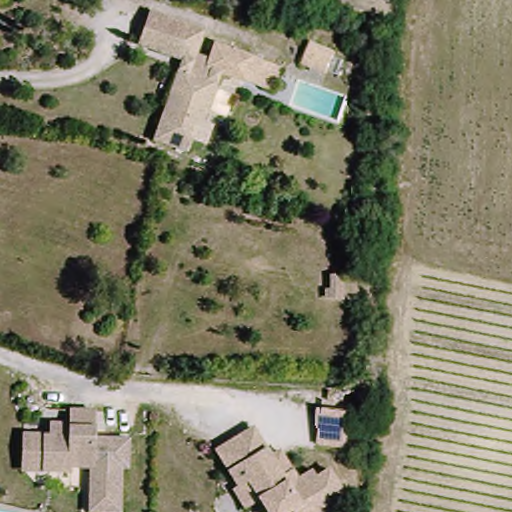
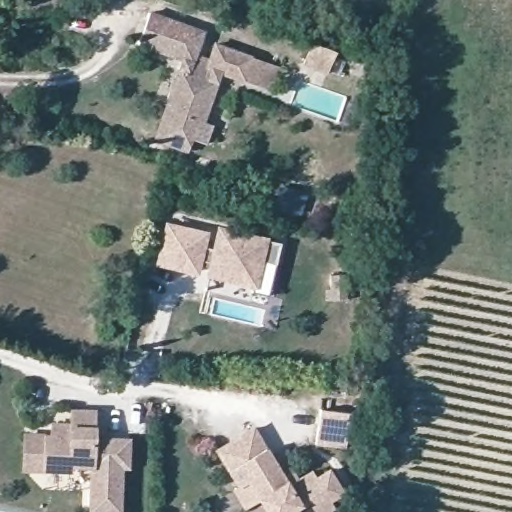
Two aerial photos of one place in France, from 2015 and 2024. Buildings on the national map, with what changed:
unchanged [(206,122),(211,124),(204,142),(192,138),(188,150),(154,137),(182,56),(138,41),(149,10),(203,29),(193,59),(206,63),(214,41),(256,55),(281,65),(273,90),(247,81),(223,72),(206,122)]
unchanged [(337,51),(328,73),(304,64),(312,42),(337,51)]
new [(208,274),(211,265),(201,262),(198,274),(160,265),(170,227),(208,236),(204,249),(214,251),(219,231),(280,247),(275,267),(267,297),(252,292),(254,286),(208,274)]
unchanged [(326,300),(326,292),(332,292),(332,276),(346,277),(346,300),(326,300)]
unchanged [(112,437),(136,438),(135,467),(129,467),(128,512),(98,511),(98,466),(74,466),(74,471),(47,470),(28,470),(28,436),(47,436),(60,436),(61,417),(74,417),(74,407),(97,407),(97,418),(97,430),(101,430),(101,437),(112,437)]
unchanged [(321,410),(351,412),(347,448),(317,445),(321,410)]
unchanged [(246,489),(248,487),(225,452),(261,429),(277,456),(286,450),(299,471),(306,481),(320,472),(324,478),(337,471),(349,492),(337,500),(341,506),(331,512),(301,512),(300,510),(297,512),(276,512),(268,500),(257,507),(246,489)]

